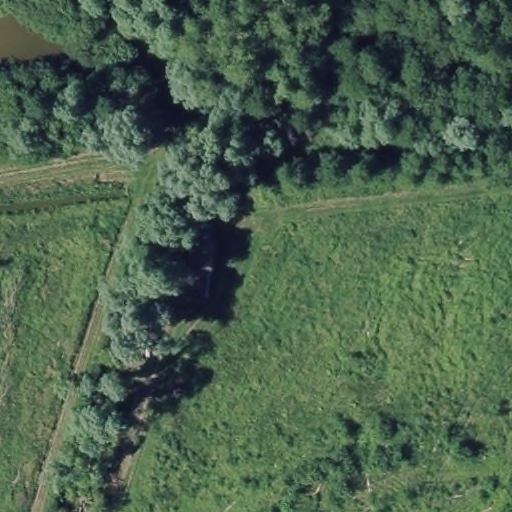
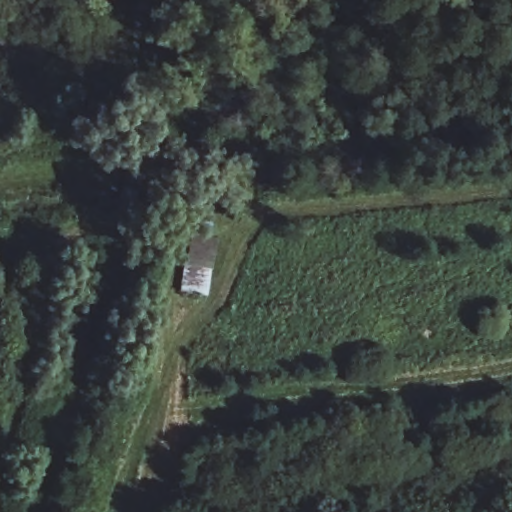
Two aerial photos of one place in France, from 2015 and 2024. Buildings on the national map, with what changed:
unchanged [(173,258),(211,264),(207,295),(168,290),(173,258)]

